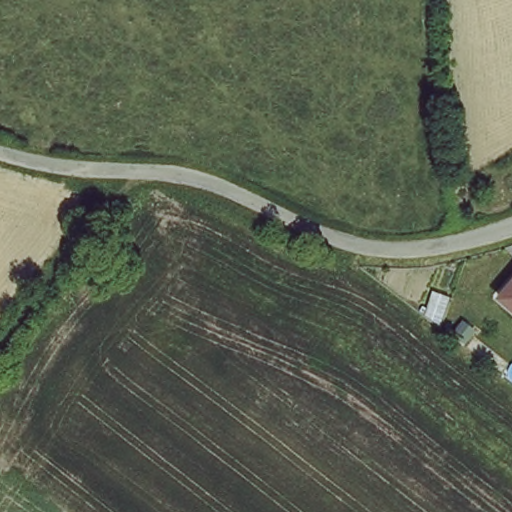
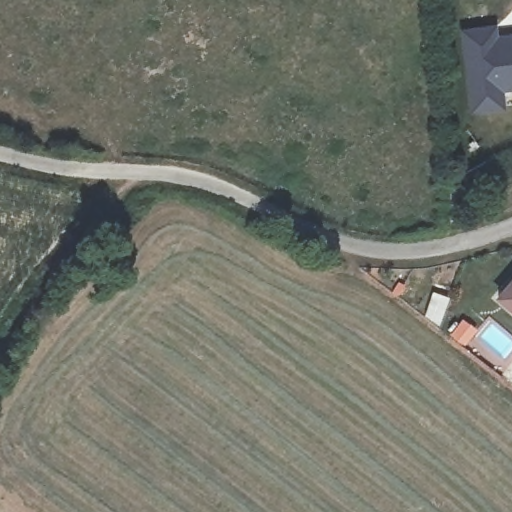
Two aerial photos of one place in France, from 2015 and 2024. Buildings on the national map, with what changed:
new [(499,20),(499,33),(512,33),(512,82),(504,82),(504,107),(467,109),(466,21),(499,20)]
unchanged [(495,293),(512,274),(512,308),(495,293)]

